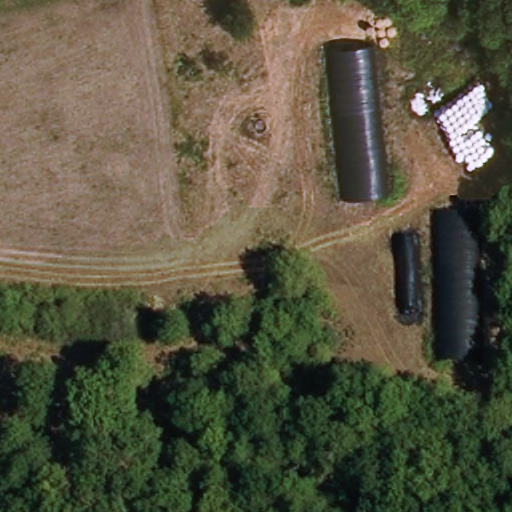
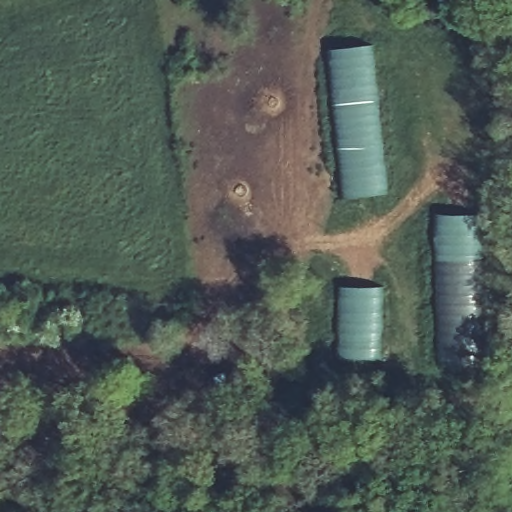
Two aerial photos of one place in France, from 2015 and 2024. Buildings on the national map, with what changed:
unchanged [(329,51),(374,45),(390,193),(345,198),(329,51)]
unchanged [(436,214),(482,215),(487,365),(440,365),(436,214)]
new [(382,361),(339,360),(338,286),(384,287),(382,361)]

